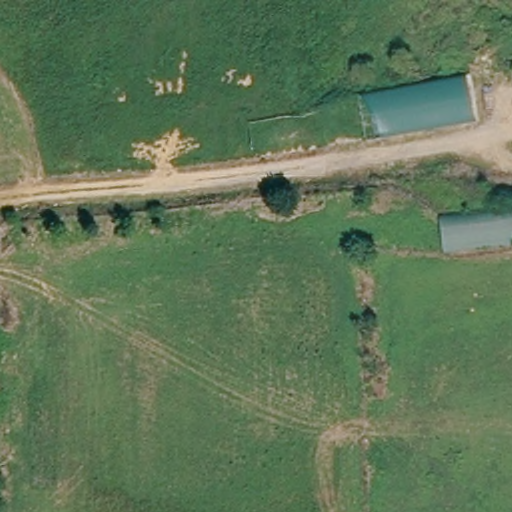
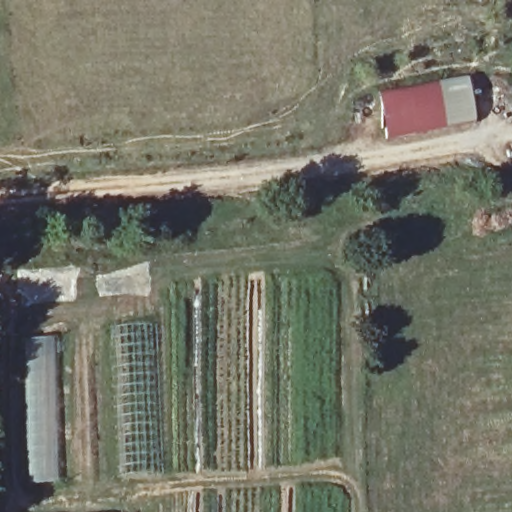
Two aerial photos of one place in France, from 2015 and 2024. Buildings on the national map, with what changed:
unchanged [(368,140),(361,98),(468,80),(477,121),(368,140)]
new [(512,243),(446,252),(442,215),(512,208),(512,243)]
new [(58,336),(63,481),(32,482),(26,336),(58,336)]

